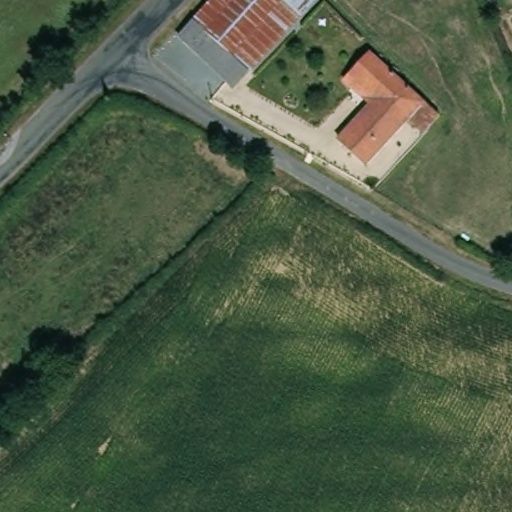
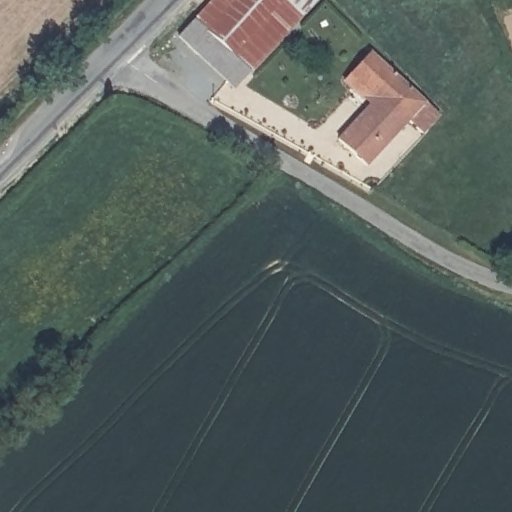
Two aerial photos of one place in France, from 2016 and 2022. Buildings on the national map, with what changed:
unchanged [(261,68),(245,85),(186,36),(218,0),(300,0),(311,8),(261,68)]
unchanged [(311,8),(300,0),(318,0),(311,8)]
unchanged [(345,77),(371,47),(443,112),(427,130),(412,117),(374,161),(343,133),(372,99),(354,84),(352,82),(345,77)]

